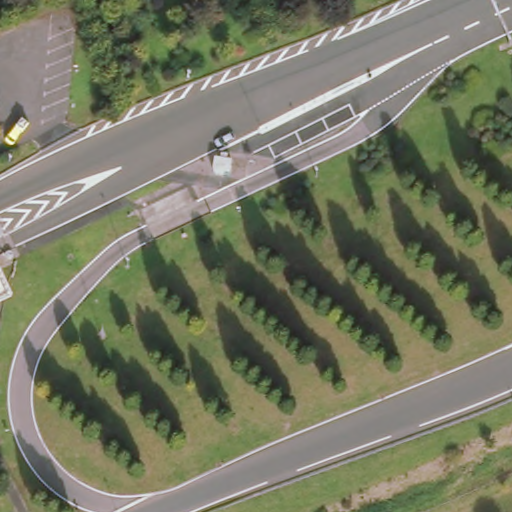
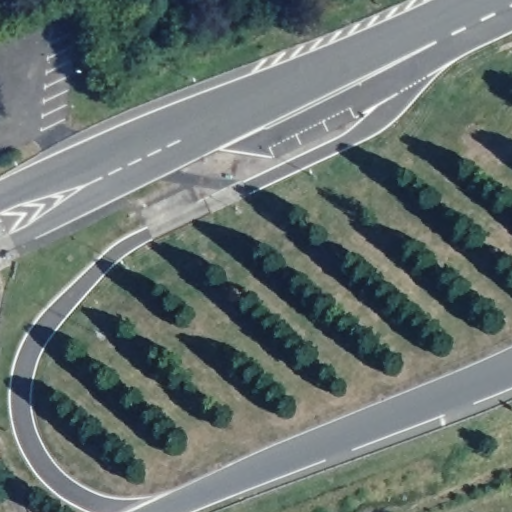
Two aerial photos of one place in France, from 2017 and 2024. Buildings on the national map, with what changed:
unchanged [(0,273),(11,298),(0,304),(0,273)]

